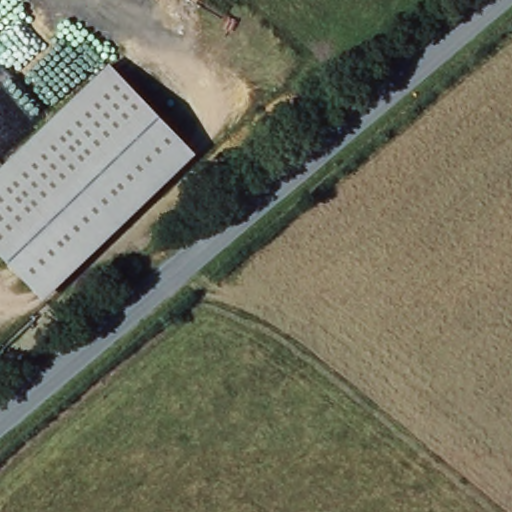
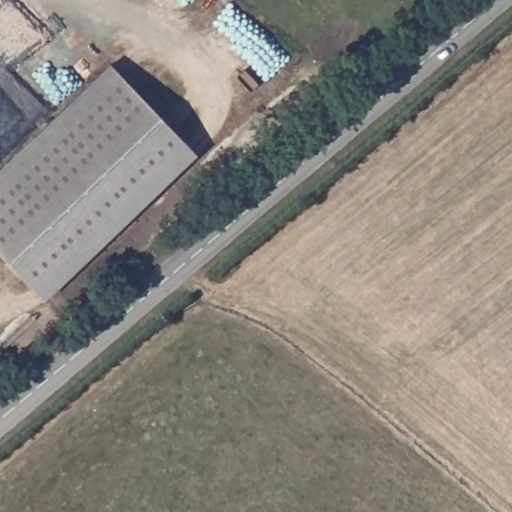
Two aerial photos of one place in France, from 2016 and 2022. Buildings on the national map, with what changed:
unchanged [(0,253),(0,169),(110,64),(197,153),(46,299),(0,253)]

